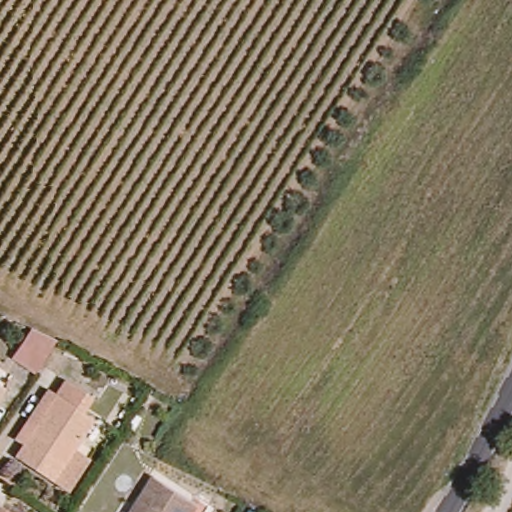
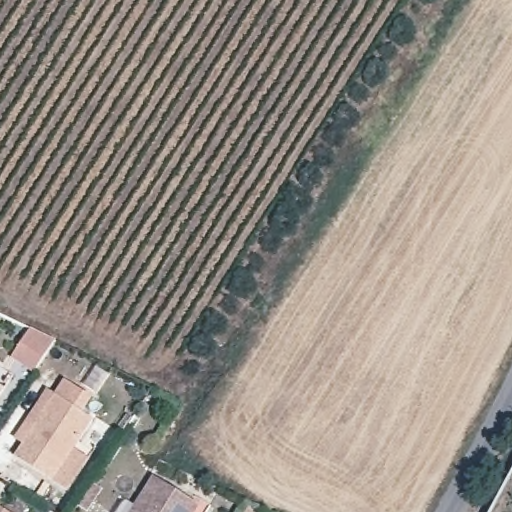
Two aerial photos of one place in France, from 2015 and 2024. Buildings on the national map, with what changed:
unchanged [(12,358),(32,330),(57,342),(34,375),(12,358)]
unchanged [(3,385),(0,390),(0,383),(3,385)]
unchanged [(68,482),(54,472),(16,447),(58,388),(94,412),(79,434),(94,445),(68,482)]
unchanged [(158,472),(202,500),(195,512),(132,512),(158,472)]
unchanged [(13,512),(0,512),(0,504),(13,512)]

